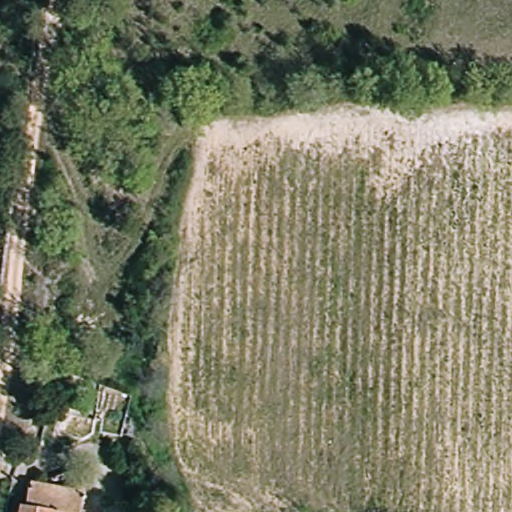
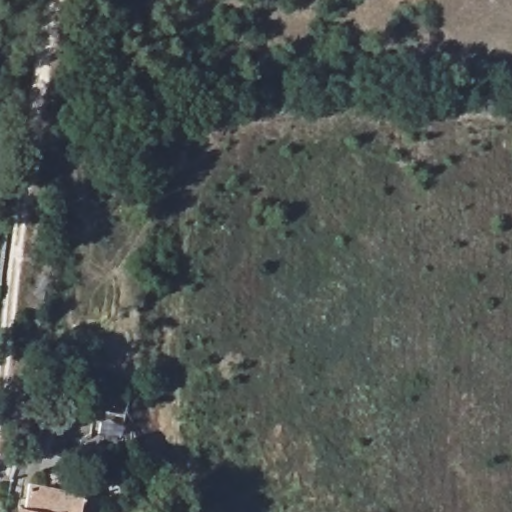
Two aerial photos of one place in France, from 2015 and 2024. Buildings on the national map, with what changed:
unchanged [(20,512),(28,482),(82,495),(81,512),(20,512)]

